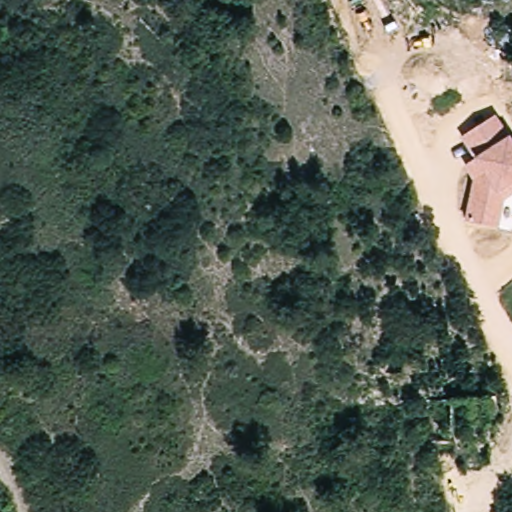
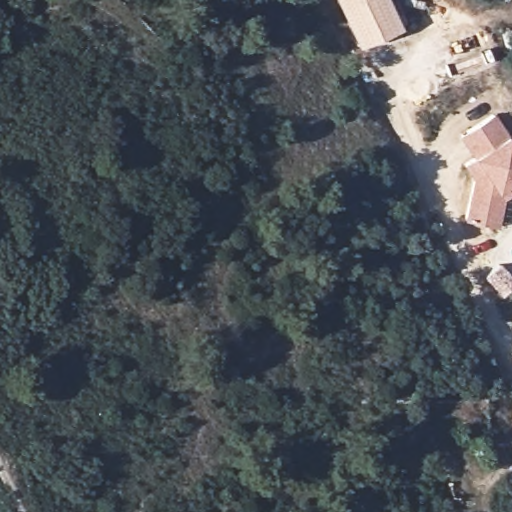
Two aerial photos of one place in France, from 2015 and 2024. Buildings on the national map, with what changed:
new [(339,0),(388,0),(400,27),(360,47),(339,0)]
unchanged [(508,203),(501,232),(471,225),(480,185),(471,170),(481,163),(466,141),(472,137),(498,120),(512,142),(512,200),(508,203)]

